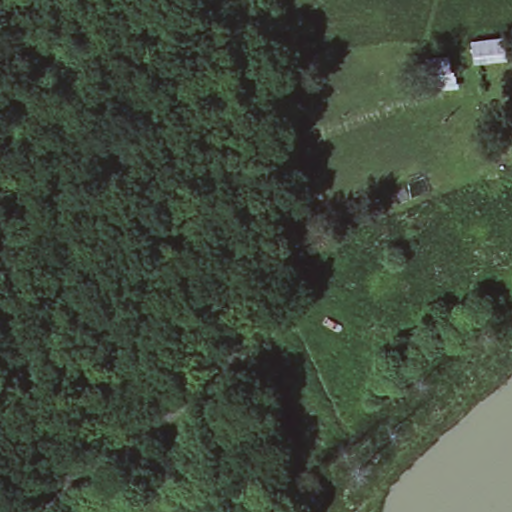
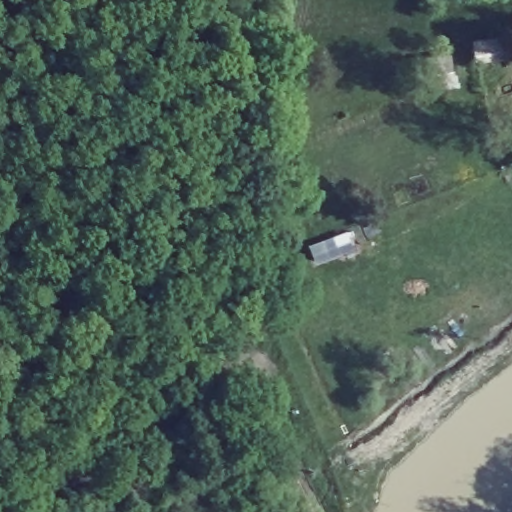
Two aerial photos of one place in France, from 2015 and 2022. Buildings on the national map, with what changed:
unchanged [(509,35),(512,55),(512,62),(473,65),(472,41),(509,35)]
unchanged [(421,59),(450,54),(456,88),(427,94),(421,59)]
new [(352,230),(359,250),(317,263),(312,246),(352,230)]

